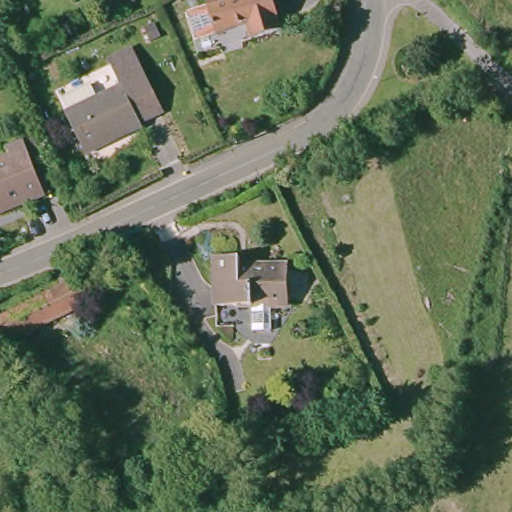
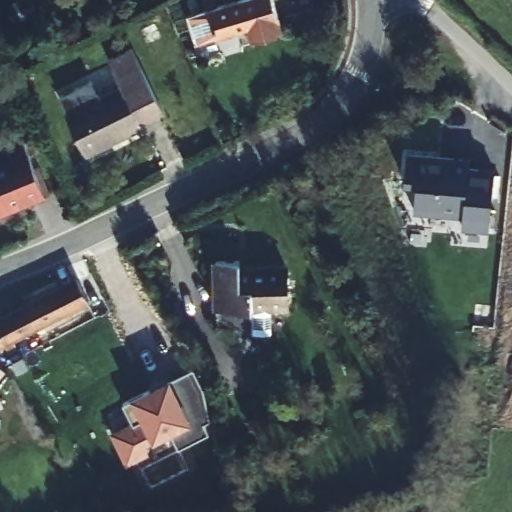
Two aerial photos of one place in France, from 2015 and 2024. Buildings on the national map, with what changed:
unchanged [(198,39),(196,34),(199,33),(192,13),(189,14),(187,9),(213,0),(277,0),(285,24),(252,35),(248,21),(198,39)]
unchanged [(153,109),(131,120),(135,128),(107,140),(104,134),(75,146),(60,109),(65,106),(59,89),(86,76),(95,93),(109,87),(100,61),(129,49),(153,109)]
unchanged [(43,191),(0,208),(0,152),(4,151),(0,141),(0,138),(19,131),(43,191)]
new [(460,225),(462,214),(414,209),(417,182),(404,180),(407,149),(469,157),(467,172),(492,175),(489,228),(460,225)]
unchanged [(217,249),(238,248),(239,259),(284,259),(286,298),(219,299),(217,249)]
unchanged [(77,297),(70,301),(72,305),(16,335),(17,339),(9,343),(7,340),(0,343),(0,314),(67,280),(77,297)]
new [(173,431),(155,438),(148,443),(151,451),(128,460),(112,430),(132,420),(124,400),(132,394),(172,374),(194,366),(204,387),(210,418),(205,421),(210,431),(179,446),(173,431)]

